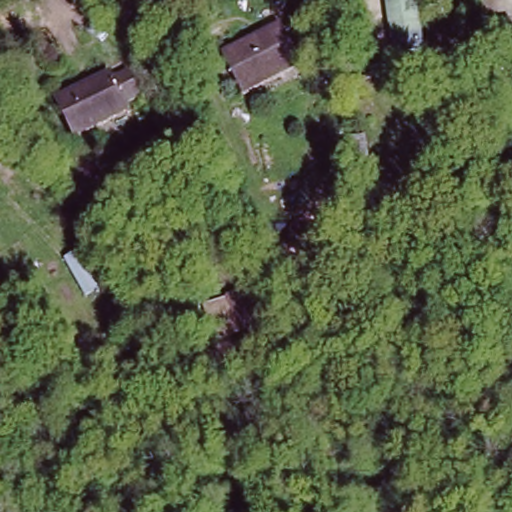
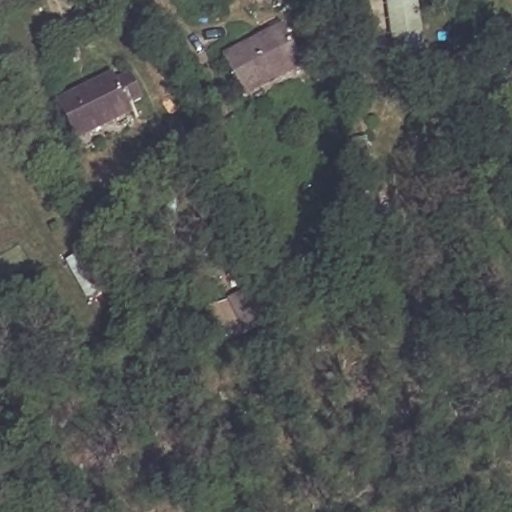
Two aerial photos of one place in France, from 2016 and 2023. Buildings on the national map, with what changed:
unchanged [(393,42),(387,5),(386,0),(410,0),(410,2),(416,37),(393,42)]
unchanged [(512,64),(496,66),(489,21),(509,19),(512,43),(512,64)]
unchanged [(301,66),(241,97),(223,60),(281,30),(301,66)]
unchanged [(138,97),(125,104),(129,112),(74,139),(56,100),(109,75),(111,80),(126,73),(138,97)]
unchanged [(319,292),(309,297),(298,274),(309,269),(319,292)]
unchanged [(305,311),(292,318),(279,291),(291,285),(305,311)]

